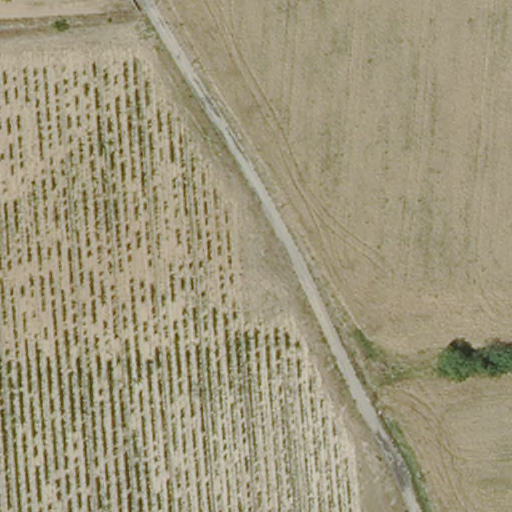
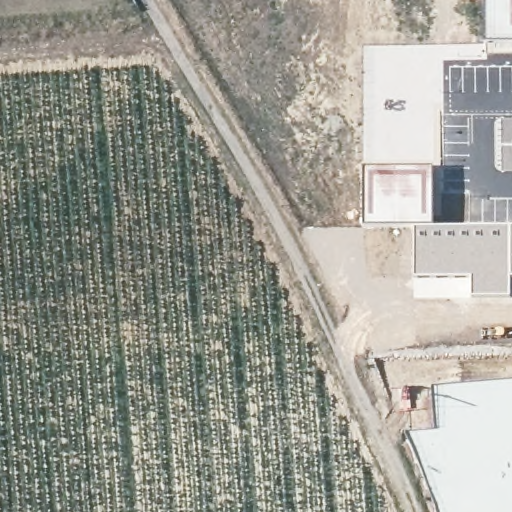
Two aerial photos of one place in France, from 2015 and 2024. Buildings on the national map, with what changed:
new [(485,44),(485,0),(512,0),(512,44),(485,44)]
new [(363,166),(433,166),(433,225),(413,227),(363,226),(363,166)]
new [(433,225),(512,225),(512,279),(511,279),(511,298),(470,298),(469,280),(413,279),(413,227),(433,225)]
new [(434,392),(512,384),(512,512),(439,512),(439,510),(410,438),(439,434),(434,392)]

